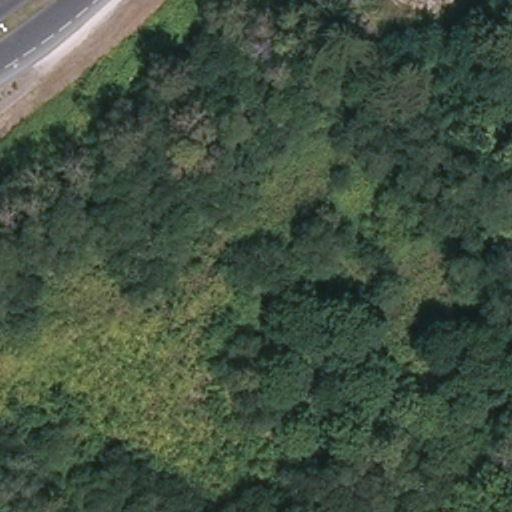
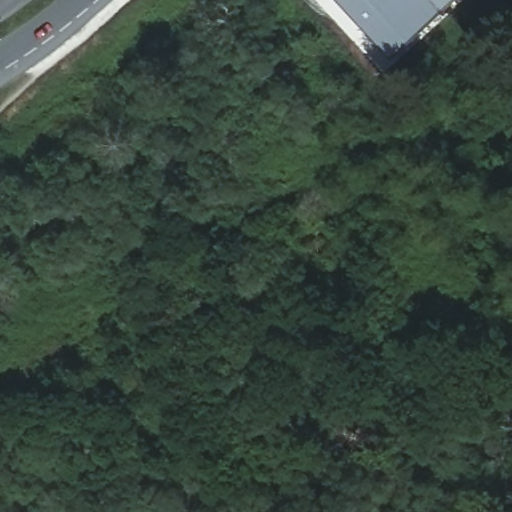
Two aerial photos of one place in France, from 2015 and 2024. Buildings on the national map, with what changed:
new [(339,0),(452,0),(391,57),(339,0)]

